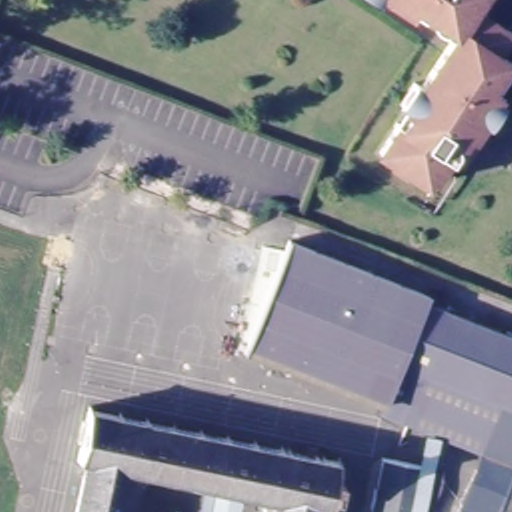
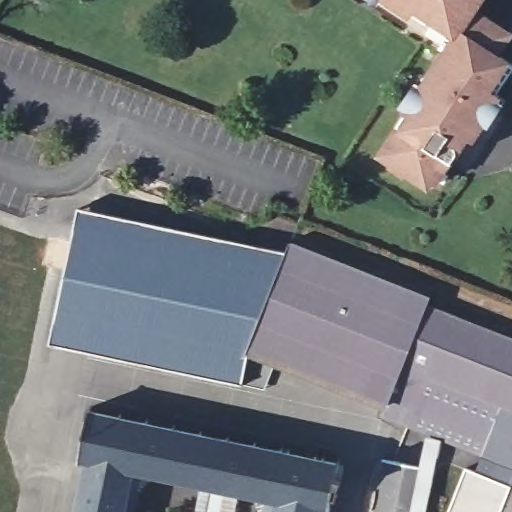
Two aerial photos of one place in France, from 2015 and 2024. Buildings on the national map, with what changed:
unchanged [(452,34),(411,6),(407,13),(388,0),(473,0),(468,6),(505,31),(491,53),(502,60),(484,88),(500,99),(482,126),(476,123),(467,137),(456,130),(448,142),(454,146),(444,161),(439,157),(420,184),(373,153),(402,109),(393,103),(406,81),(416,88),(452,34)]
new [(78,209),(289,254),(251,351),(276,360),(266,389),(242,384),(51,343),(78,209)]
unchanged [(276,360),(251,351),(289,254),(293,244),(431,298),(428,304),(455,315),(512,337),(512,481),(499,475),(504,463),(489,458),(443,439),(428,434),(412,428),(384,417),(388,404),(276,360)]
unchanged [(97,457),(89,455),(99,409),(349,460),(346,474),(350,476),(347,491),(340,489),(337,505),(328,504),(327,512),(271,512),(263,492),(251,489),(246,512),(208,504),(213,481),(152,468),(143,512),(86,512),(97,457)]
unchanged [(443,439),(428,512),(413,512),(422,466),(428,434),(443,439)]
new [(504,463),(499,475),(512,481),(512,496),(505,512),(448,512),(465,467),(476,471),(482,454),(489,458),(504,463)]
unchanged [(384,458),(422,466),(413,512),(373,512),(384,458)]
unchanged [(512,496),(512,512),(505,512),(512,496)]

